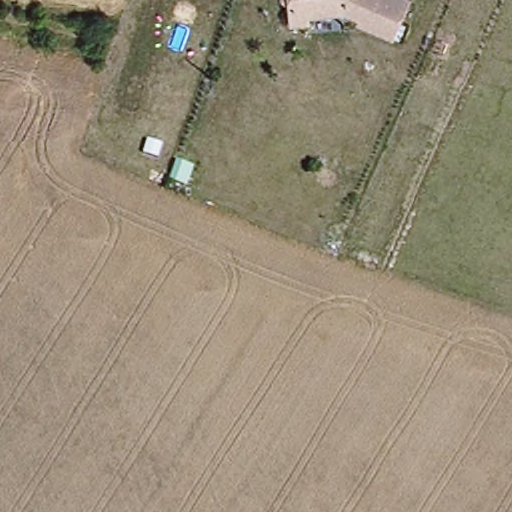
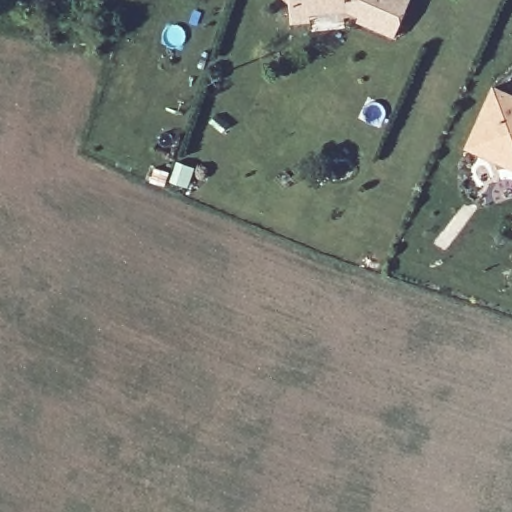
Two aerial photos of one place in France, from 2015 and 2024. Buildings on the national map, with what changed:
unchanged [(292,0),(413,0),(398,35),(363,19),(364,15),(350,8),(313,11),(313,20),(295,21),(293,1),(292,0)]
new [(464,147),(492,85),(512,93),(512,170),(464,147)]

